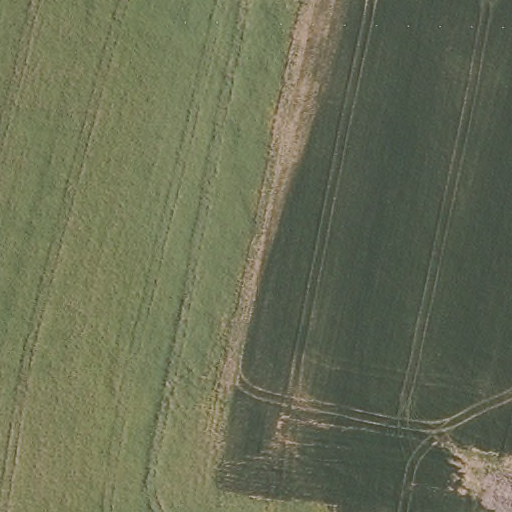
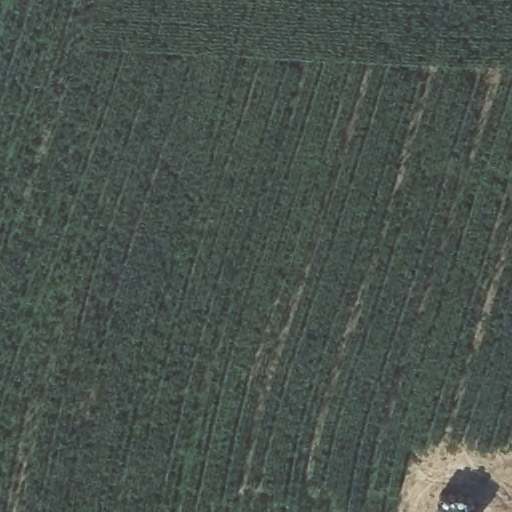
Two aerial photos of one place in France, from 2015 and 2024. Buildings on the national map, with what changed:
[]

